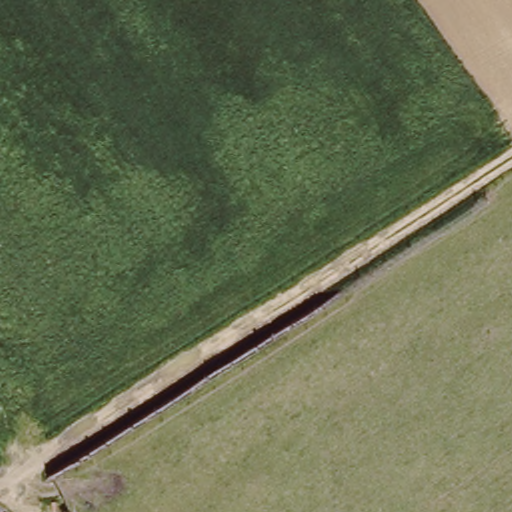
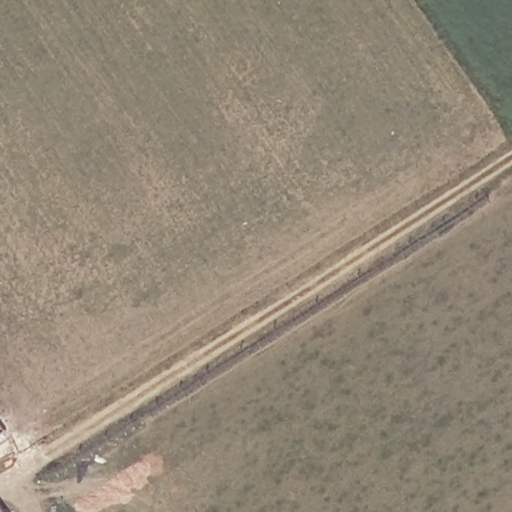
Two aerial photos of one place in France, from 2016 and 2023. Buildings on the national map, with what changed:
[]

